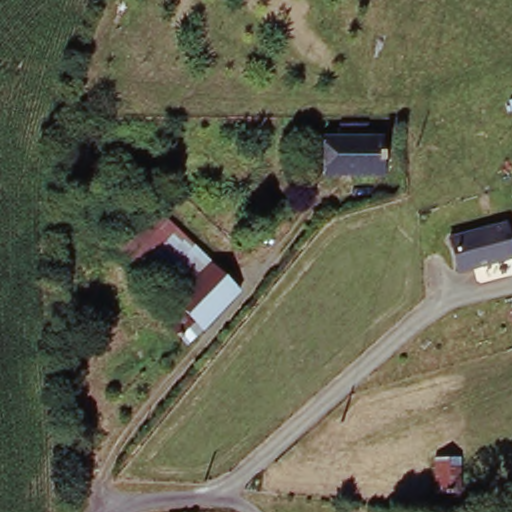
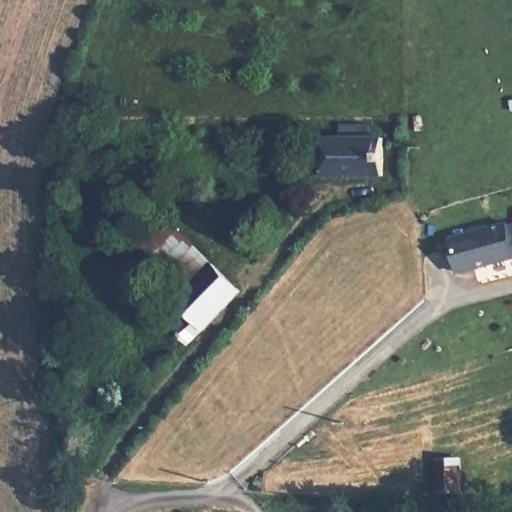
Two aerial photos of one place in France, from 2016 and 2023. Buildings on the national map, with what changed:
unchanged [(320,177),(321,143),(322,137),(378,138),(378,176),(320,177)]
unchanged [(182,295),(125,233),(158,198),(217,260),(182,295)]
unchanged [(507,218),(512,238),(512,256),(461,269),(451,232),(507,218)]
unchanged [(508,225),(512,224),(512,239),(508,225)]
unchanged [(178,326),(195,309),(180,297),(182,295),(217,260),(244,287),(207,326),(204,325),(191,337),(178,326)]
unchanged [(466,455),(466,493),(441,493),(440,456),(466,455)]

